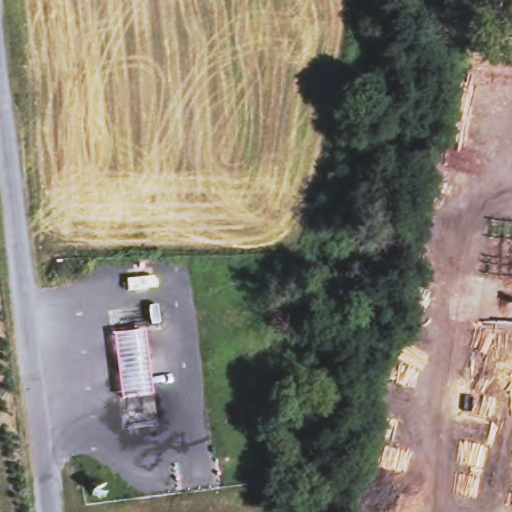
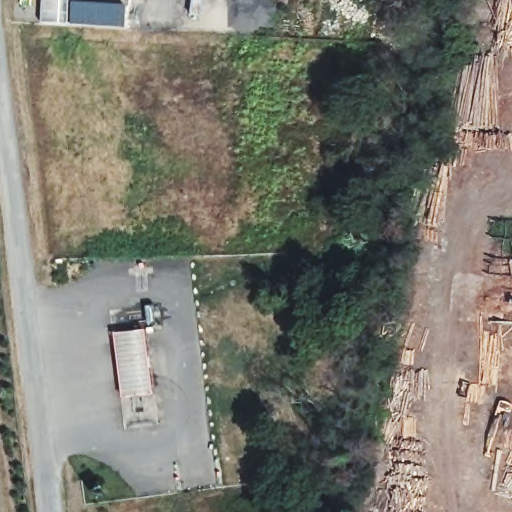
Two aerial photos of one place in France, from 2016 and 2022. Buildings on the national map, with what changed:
new [(45,0),(73,0),(71,25),(44,24),(45,0)]
new [(76,6),(132,9),(131,29),(75,26),(76,6)]
unchanged [(111,332),(145,327),(155,395),(121,400),(111,332)]

